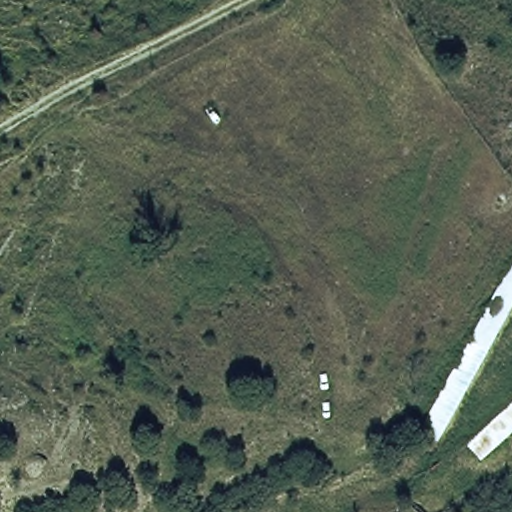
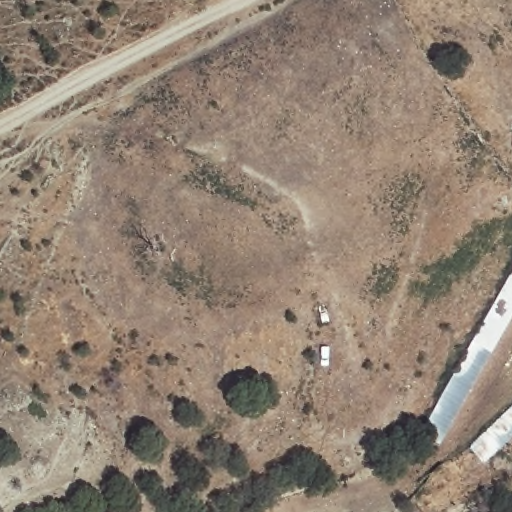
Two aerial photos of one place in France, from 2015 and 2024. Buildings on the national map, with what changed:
unchanged [(440,447),(420,434),(512,261),(512,314),(440,447)]
unchanged [(482,463),(466,445),(512,404),(512,438),(482,463)]

